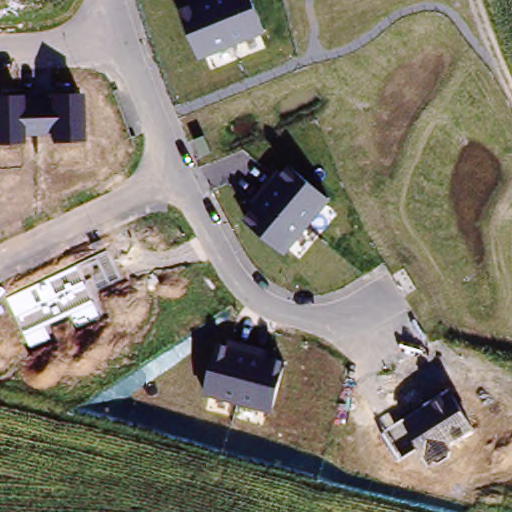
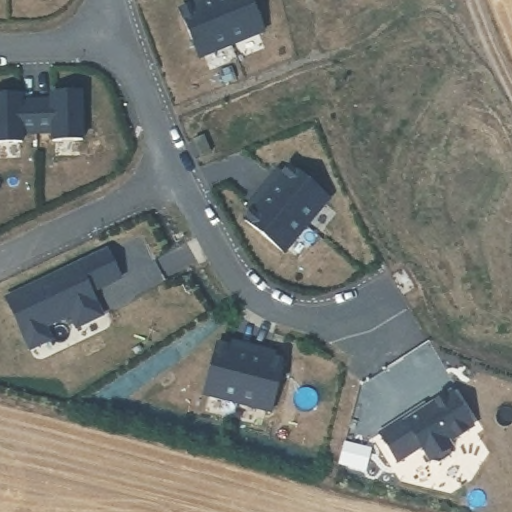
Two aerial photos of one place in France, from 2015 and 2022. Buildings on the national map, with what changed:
unchanged [(201,60),(180,9),(203,0),(251,0),(265,33),(201,60)]
unchanged [(25,104),(53,103),(52,93),(82,94),(84,141),(49,142),(49,134),(24,135),(24,143),(0,144),(0,97),(24,96),(25,104)]
unchanged [(286,255),(244,219),(251,210),(247,207),(278,169),(282,172),(288,167),(329,200),(286,255)]
new [(125,280),(94,297),(95,299),(104,318),(76,331),(69,318),(46,327),(51,340),(28,352),(3,297),(106,249),(125,280)]
unchanged [(205,396),(220,339),(268,351),(266,357),(285,362),(272,413),(205,396)]
unchanged [(451,445),(453,450),(449,453),(448,458),(438,463),(434,462),(428,465),(418,449),(400,460),(382,433),(450,390),(475,429),(451,445)]

